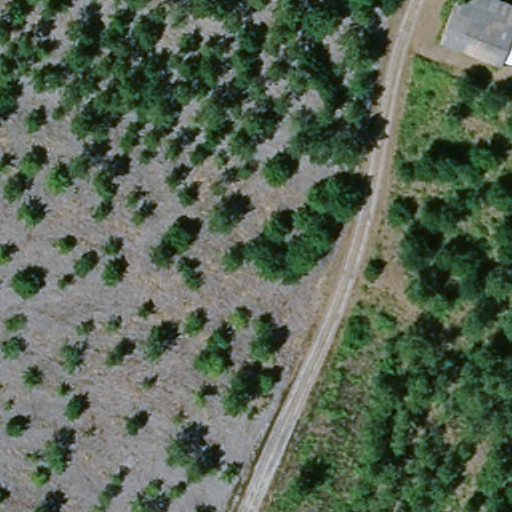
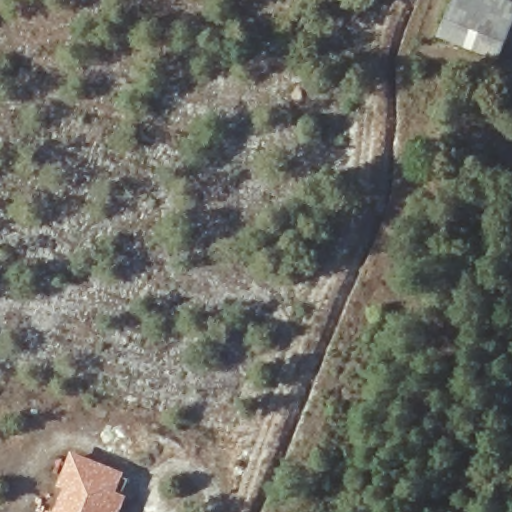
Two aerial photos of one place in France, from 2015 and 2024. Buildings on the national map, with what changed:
unchanged [(442,37),(455,0),(489,0),(512,9),(512,20),(497,60),(442,37)]
new [(72,486),(61,483),(70,456),(115,472),(106,498),(119,504),(115,512),(65,512),(72,486)]

